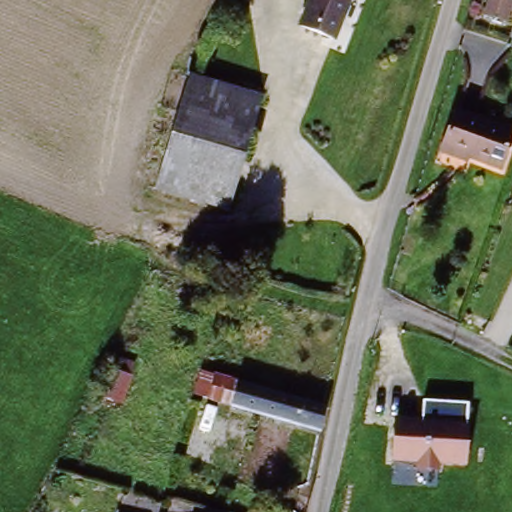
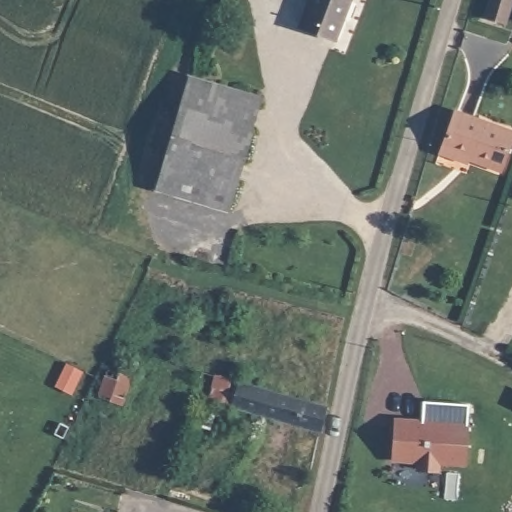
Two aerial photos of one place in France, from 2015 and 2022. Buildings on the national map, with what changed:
unchanged [(339,40),(303,30),(311,0),(350,0),(339,40)]
unchanged [(512,9),(507,24),(485,16),(491,0),(512,0),(512,9)]
unchanged [(255,100),(230,207),(159,188),(184,81),(255,100)]
unchanged [(440,147),(452,112),(511,131),(500,164),(440,147)]
unchanged [(121,406),(96,396),(113,351),(135,353),(121,406)]
unchanged [(211,375),(327,401),(320,427),(206,399),(211,375)]
unchanged [(396,458),(395,418),(423,418),(425,398),(470,401),(468,462),(396,458)]

